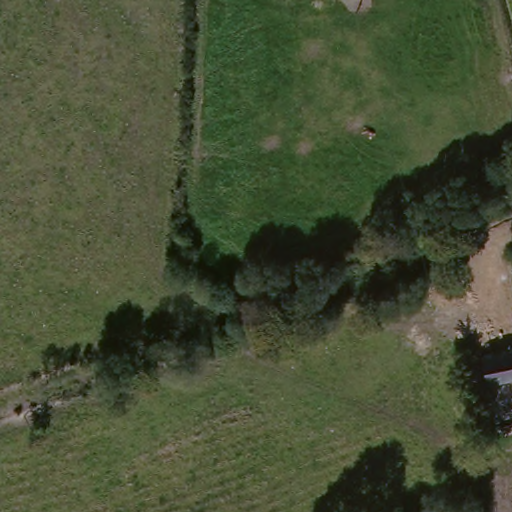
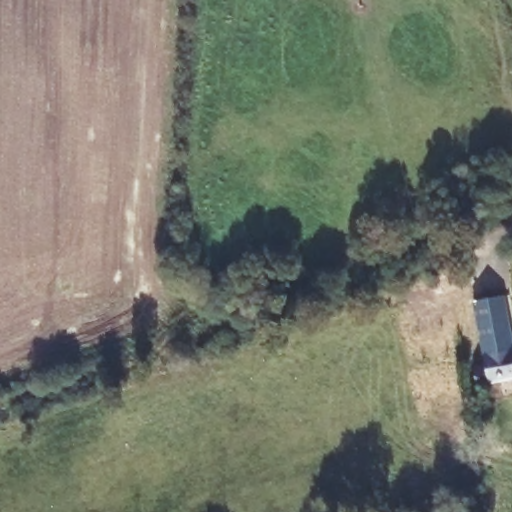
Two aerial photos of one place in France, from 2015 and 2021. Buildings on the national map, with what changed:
new [(474,302),(504,296),(512,338),(512,380),(488,383),(476,384),(473,366),(484,364),(474,302)]
demolished [(467,364),(479,361),(476,342),(486,340),(486,345),(512,339),(512,374),(471,383),(467,364)]

